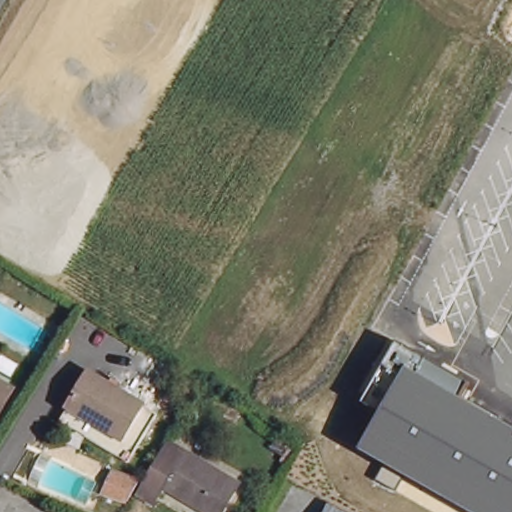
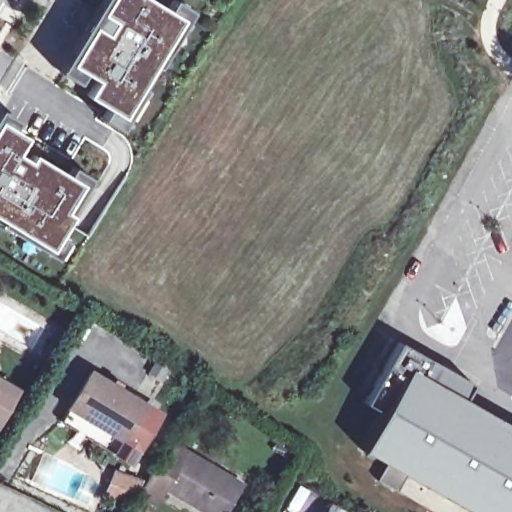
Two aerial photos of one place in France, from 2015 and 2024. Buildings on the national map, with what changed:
new [(77,0),(80,0),(98,11),(105,0),(151,0),(165,9),(179,17),(119,115),(104,106),(84,94),(85,90),(92,79),(81,71),(75,81),(57,69),(82,29),(65,19),(77,0)]
new [(119,115),(179,17),(165,9),(170,0),(173,0),(189,10),(117,128),(98,116),(104,106),(119,115)]
new [(24,135),(14,151),(25,159),(30,152),(77,182),(61,209),(68,213),(47,248),(0,219),(0,121),(24,135)]
unchanged [(73,310),(62,328),(39,314),(50,297),(73,310)]
unchanged [(357,416),(371,424),(384,403),(387,404),(408,369),(512,429),(512,512),(470,512),(344,439),(357,416)]
unchanged [(126,444),(75,412),(95,379),(147,410),(126,444)]
unchanged [(0,423),(0,390),(14,399),(0,423)]
unchanged [(226,512),(210,512),(167,487),(160,499),(145,490),(172,441),(244,482),(226,512)]
unchanged [(108,490),(120,467),(145,480),(132,503),(108,490)]
unchanged [(330,504),(344,512),(326,512),(330,504)]

